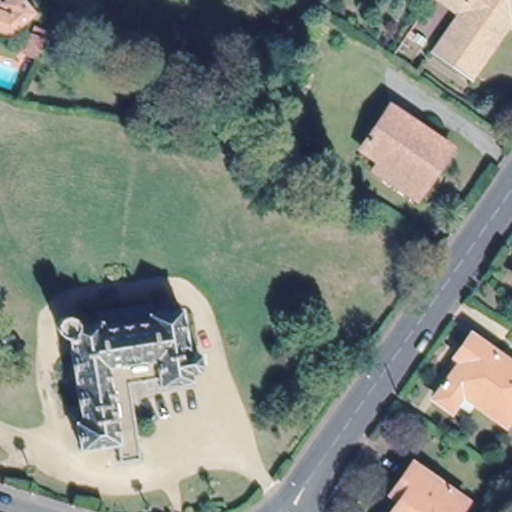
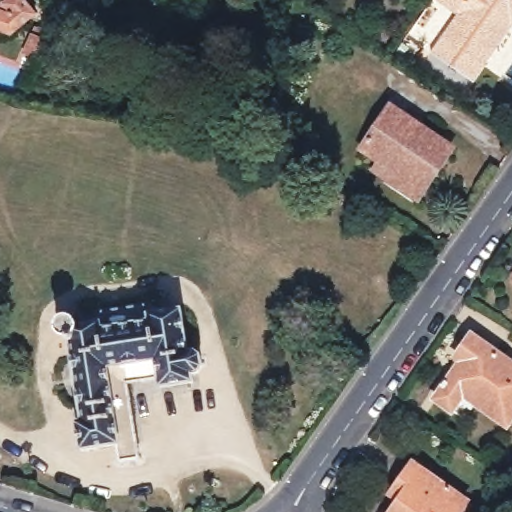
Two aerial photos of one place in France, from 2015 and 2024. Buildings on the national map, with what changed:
unchanged [(16,5),(21,0),(34,0),(45,14),(19,34),(0,28),(0,0),(2,0),(16,5)]
unchanged [(439,2),(436,0),(439,0),(439,2)]
unchanged [(512,40),(497,65),(492,62),(481,79),(445,56),(476,4),(469,0),(512,0),(512,40)]
unchanged [(41,49),(53,25),(64,29),(52,53),(41,49)]
unchanged [(378,173),(386,162),(367,149),(395,109),(453,151),(426,191),(418,201),(378,173)]
unchanged [(128,464),(125,447),(89,453),(84,425),(89,424),(75,338),(70,337),(66,335),(64,332),(65,326),(67,322),(72,320),(77,322),(80,325),(82,331),(103,326),(101,316),(153,307),(155,318),(186,313),(192,353),(205,358),(207,370),(204,374),(196,376),(197,382),(165,388),(164,381),(132,386),(142,444),(145,461),(128,464)]
unchanged [(465,401),(450,389),(488,338),(512,356),(512,423),(471,392),(465,401)]
unchanged [(463,512),(396,512),(405,500),(397,494),(403,485),(417,467),(468,507),(463,512)]

